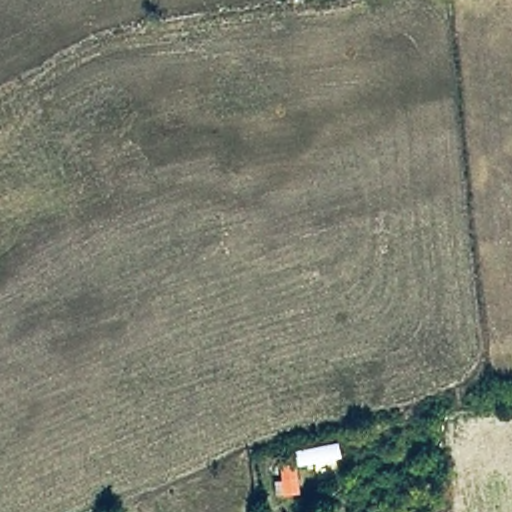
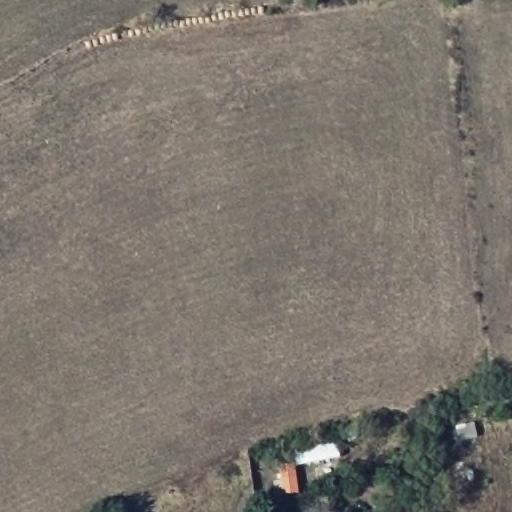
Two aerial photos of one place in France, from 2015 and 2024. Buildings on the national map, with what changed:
unchanged [(279,477),(299,473),(300,491),(280,492),(279,477)]
unchanged [(110,505),(114,512),(92,512),(110,505)]

